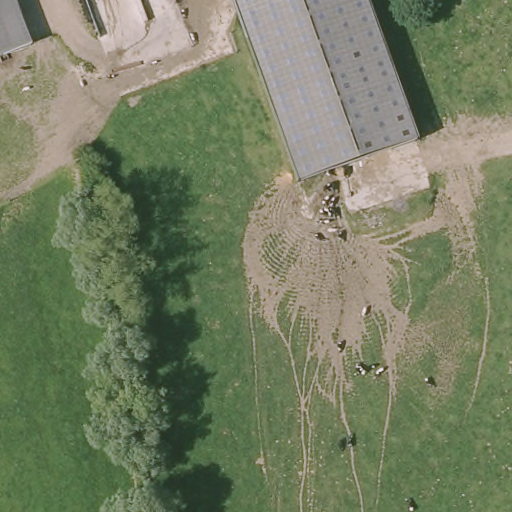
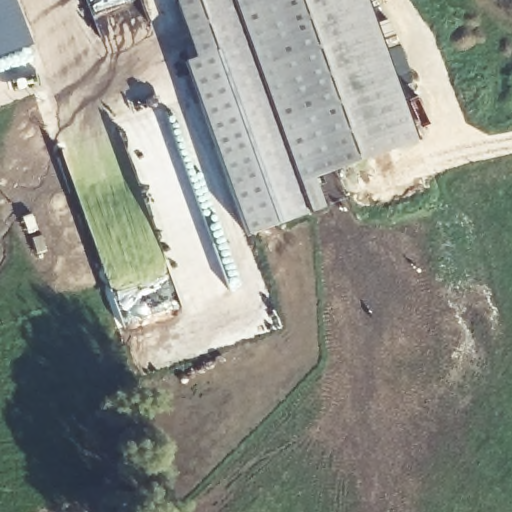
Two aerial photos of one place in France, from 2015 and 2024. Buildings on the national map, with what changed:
unchanged [(0,0),(6,0),(22,51),(0,59),(0,0)]
new [(283,187),(315,177),(325,206),(247,234),(185,59),(195,56),(176,0),(223,0),(235,40),(283,187)]
unchanged [(407,148),(283,187),(235,40),(223,0),(358,0),(363,16),(407,148)]

